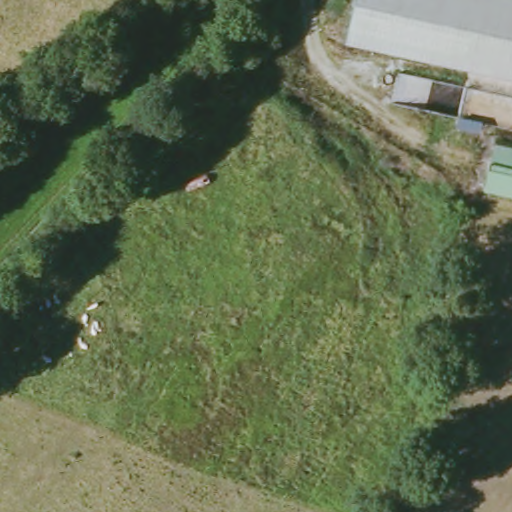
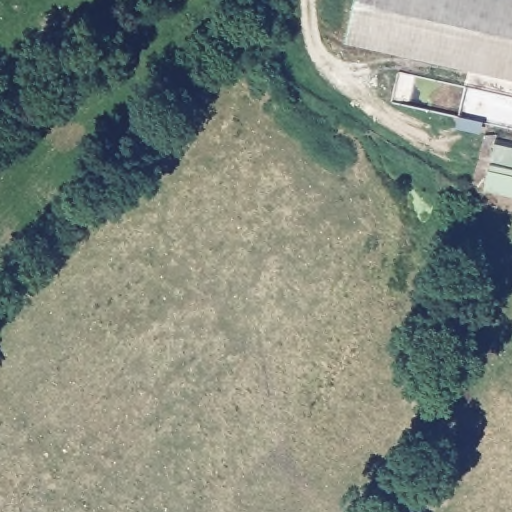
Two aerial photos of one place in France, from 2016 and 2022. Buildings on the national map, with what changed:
unchanged [(342,43),(351,0),(512,0),(512,79),(342,43)]
unchanged [(512,145),(512,198),(482,191),(495,141),(512,145)]

